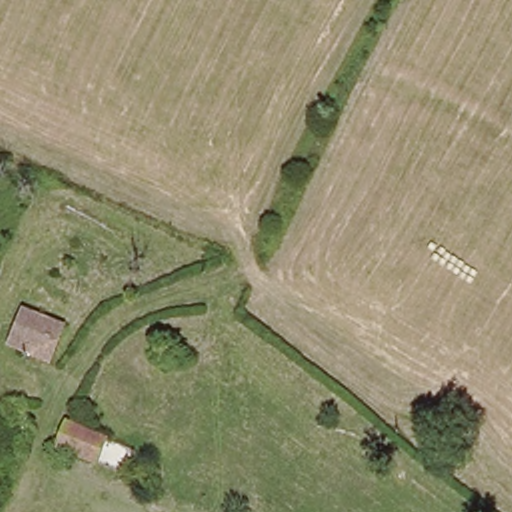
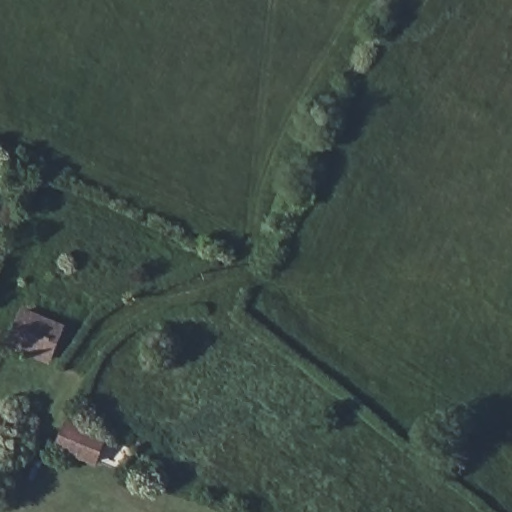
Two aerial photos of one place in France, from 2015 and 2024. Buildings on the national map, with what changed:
unchanged [(19,331),(28,309),(63,322),(46,361),(30,355),(11,348),(19,331)]
unchanged [(107,436),(106,437),(95,462),(76,455),(60,447),(70,422),(107,436)]

